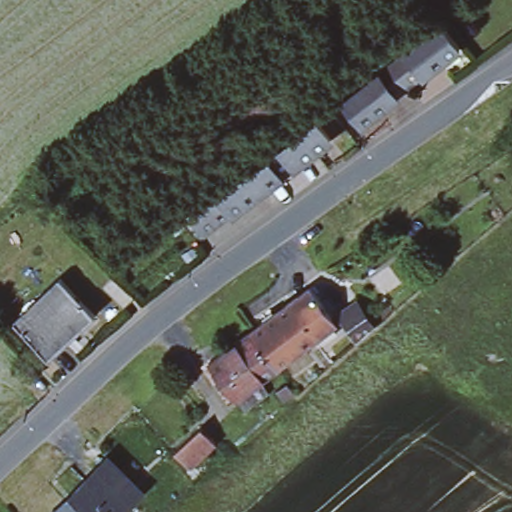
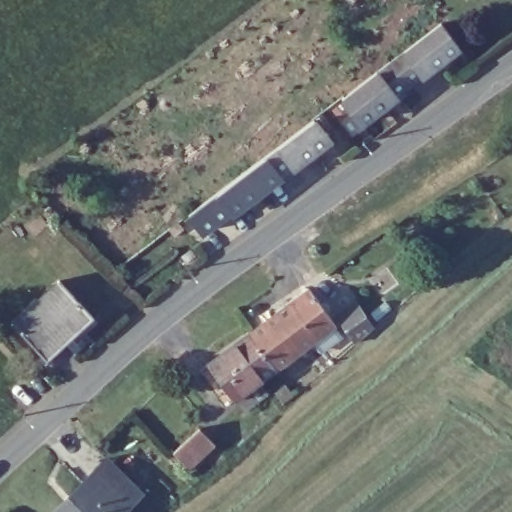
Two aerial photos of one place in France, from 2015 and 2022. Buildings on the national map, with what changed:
unchanged [(342,96),(377,69),(390,59),(405,48),(440,20),(460,46),(424,73),(422,71),(407,82),(407,83),(393,93),(395,95),(360,121),(342,96)]
unchanged [(283,144),(319,116),(335,138),(298,165),(297,164),(283,144)]
unchanged [(185,219),(195,211),(283,144),(297,164),(283,174),(237,209),(235,208),(207,229),(205,225),(195,232),(185,219)]
unchanged [(57,279),(90,315),(46,355),(12,320),(57,279)]
unchanged [(290,302),(291,304),(308,291),(334,325),(317,338),(274,370),(245,335),(290,302)]
unchanged [(338,317),(355,306),(371,330),(355,344),(338,317)]
unchanged [(274,370),(233,400),(205,365),(245,335),(274,370)]
unchanged [(202,429),(217,445),(191,469),(176,452),(202,429)]
unchanged [(124,512),(57,512),(97,471),(108,460),(138,490),(128,500),(132,504),(124,512)]

